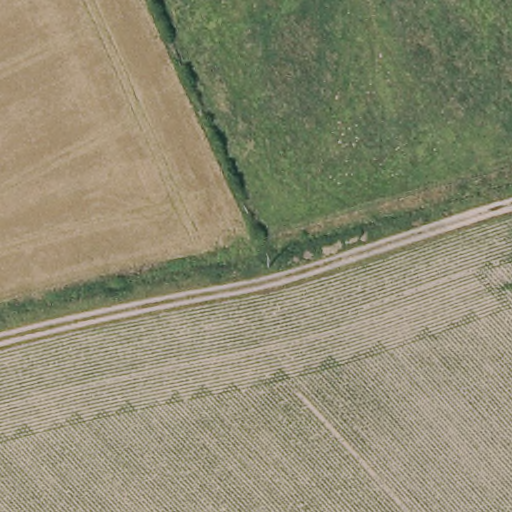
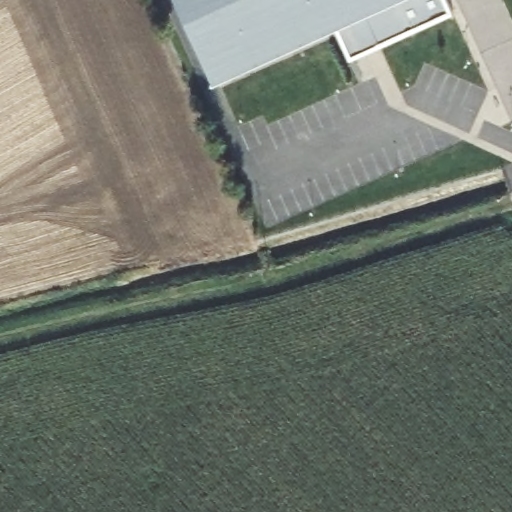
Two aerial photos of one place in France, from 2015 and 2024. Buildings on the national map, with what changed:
new [(354,58),(343,23),(216,80),(180,0),(446,0),(452,13),(354,58)]

